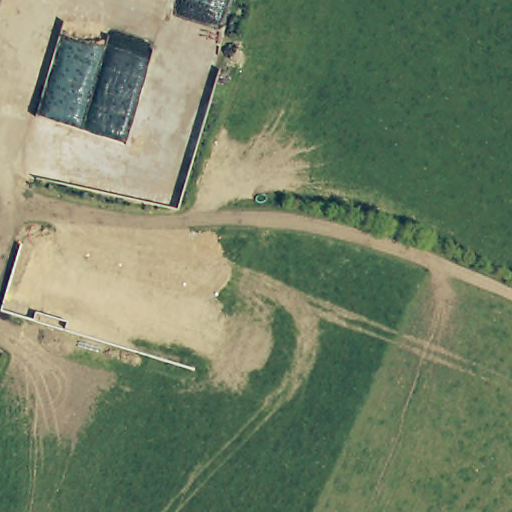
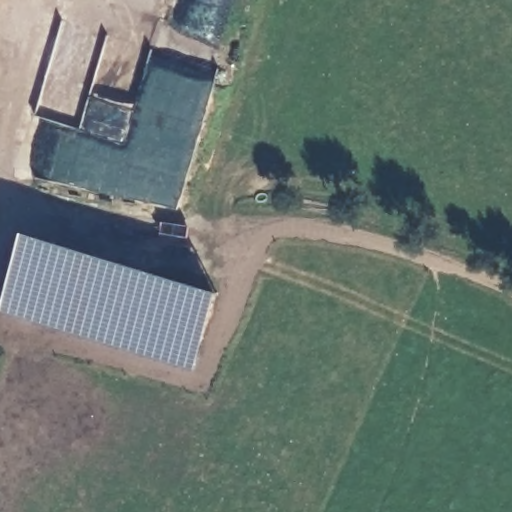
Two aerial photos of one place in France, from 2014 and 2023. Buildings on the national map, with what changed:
new [(23,233),(218,291),(193,370),(0,310),(23,233)]

